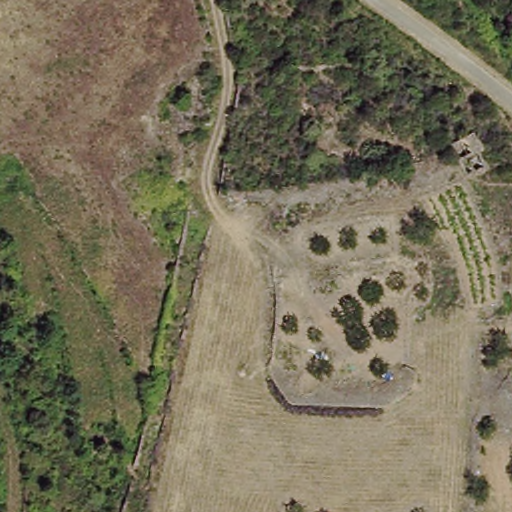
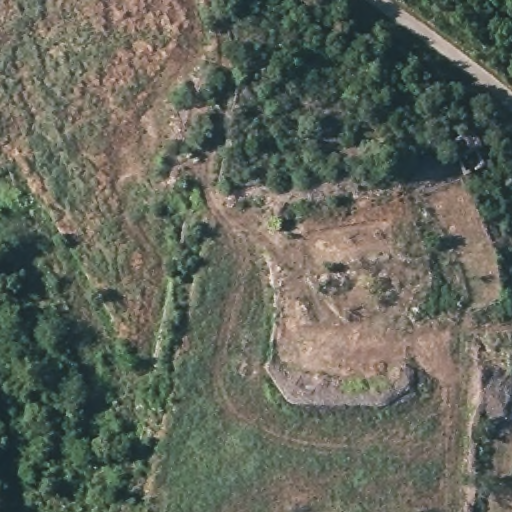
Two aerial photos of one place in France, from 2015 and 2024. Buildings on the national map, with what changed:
unchanged [(460,178),(454,160),(475,150),(483,165),(460,178)]

